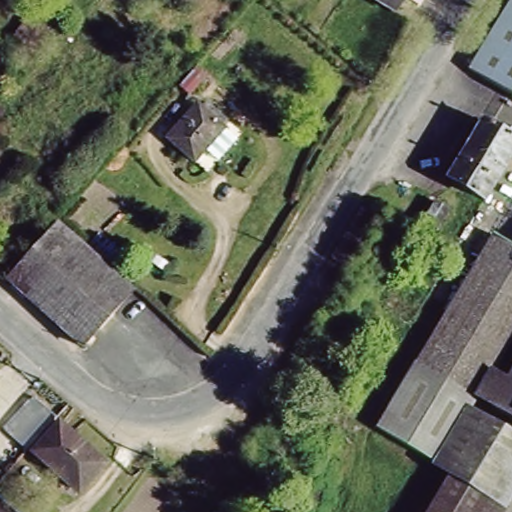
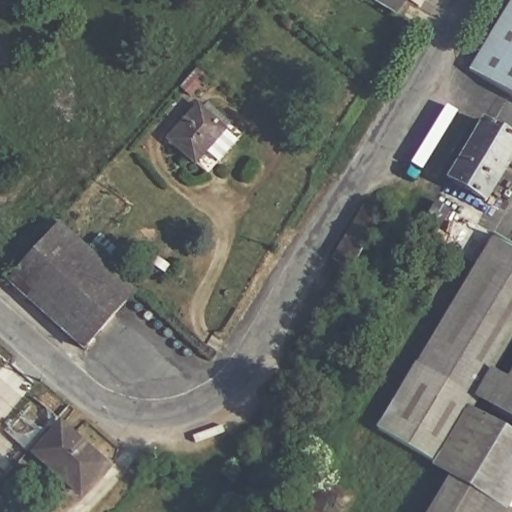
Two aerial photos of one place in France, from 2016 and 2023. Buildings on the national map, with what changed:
unchanged [(404,0),(403,0),(393,18),(363,0),(404,0)]
unchanged [(507,0),(512,0),(512,101),(464,71),(507,0)]
unchanged [(210,112),(236,135),(207,167),(182,145),(210,112)]
unchanged [(512,158),(485,204),(450,183),(483,126),(512,143),(512,158)]
unchanged [(450,200),(437,221),(423,213),(435,192),(450,200)]
unchanged [(381,209),(351,260),(333,248),(363,197),(367,199),(381,209)]
unchanged [(134,296),(83,353),(10,286),(58,229),(134,296)]
unchanged [(450,475),(373,423),(493,234),(512,245),(512,339),(491,370),(507,377),(512,368),(512,423),(474,398),(471,411),(512,436),(512,501),(505,512),(429,512),(450,475)]
unchanged [(91,485),(83,478),(68,494),(30,456),(60,423),(105,467),(91,485)]
unchanged [(15,512),(0,512),(0,499),(15,512)]

